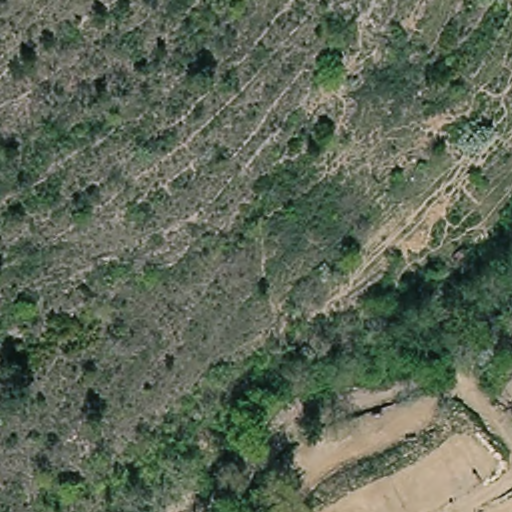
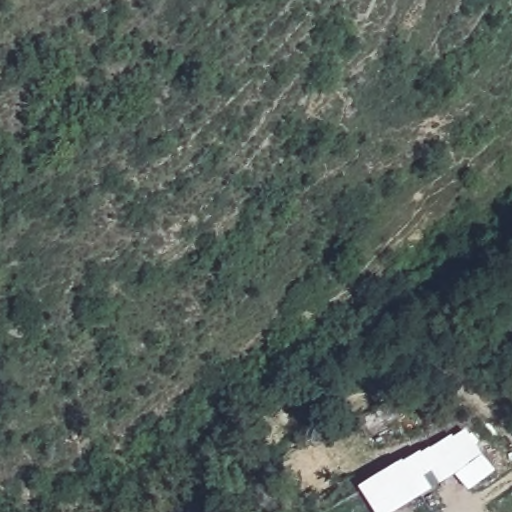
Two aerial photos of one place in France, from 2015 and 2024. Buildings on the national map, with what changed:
new [(405,462),(421,452),(423,454),(453,435),(455,438),(468,430),(483,455),(497,471),(470,490),(457,475),(396,512),(375,512),(359,487),(404,460),(405,462)]

